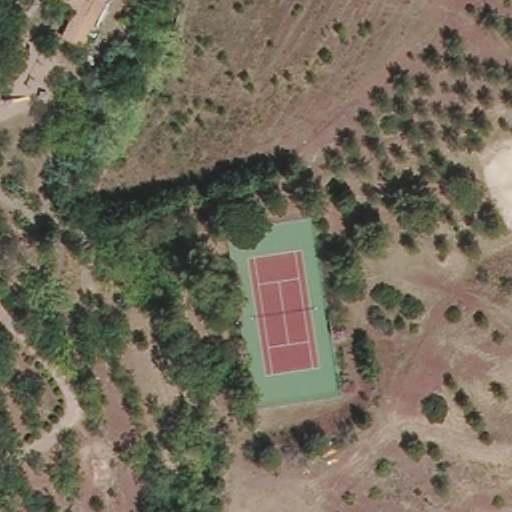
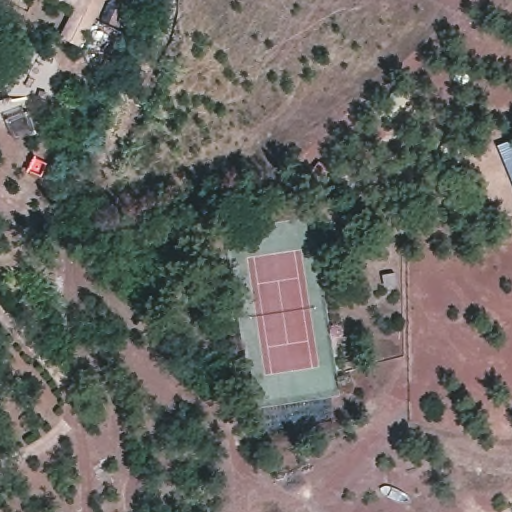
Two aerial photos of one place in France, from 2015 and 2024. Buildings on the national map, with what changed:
unchanged [(69,9),(50,0),(100,0),(80,49),(56,36),(69,9)]
new [(498,145),(512,139),(512,180),(498,145)]

